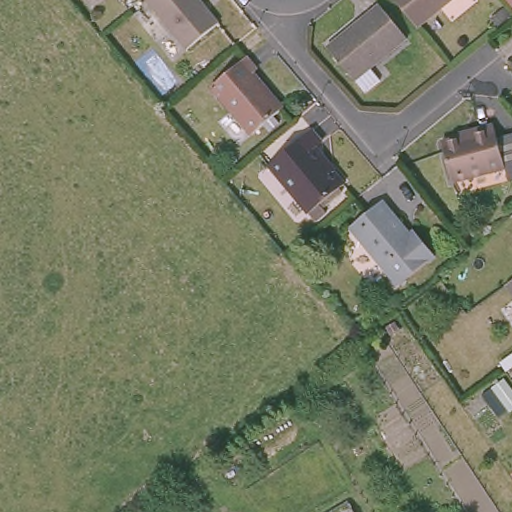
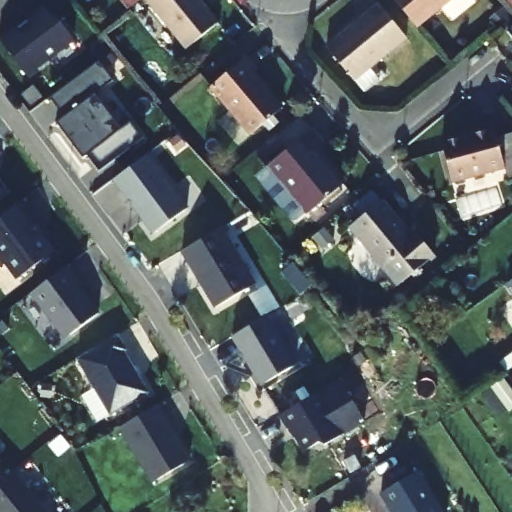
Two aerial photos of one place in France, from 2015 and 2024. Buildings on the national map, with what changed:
unchanged [(216,22),(186,48),(145,0),(198,0),(216,22)]
unchanged [(415,27),(393,0),(448,0),(415,27)]
unchanged [(406,41),(369,71),(380,83),(366,96),(324,47),(377,5),(406,41)]
new [(55,20),(61,22),(76,42),(29,76),(0,41),(44,7),(55,20)]
unchanged [(255,66),(253,68),(281,104),(248,131),(210,82),(244,53),(255,66)]
new [(113,80),(95,94),(123,129),(131,121),(143,138),(99,170),(88,155),(83,158),(58,120),(66,114),(53,98),(99,63),(113,80)]
unchanged [(498,170),(444,181),(436,141),(471,133),(471,129),(489,125),(498,170)]
unchanged [(321,145),(313,150),(343,186),(308,215),(269,166),(309,132),(321,145)]
new [(147,154),(188,208),(153,234),(113,180),(147,154)]
new [(0,194),(0,189),(3,192),(0,194)]
new [(33,220),(31,222),(54,252),(18,279),(0,255),(0,216),(19,202),(33,220)]
unchanged [(410,236),(416,231),(436,255),(399,285),(351,227),(381,202),(410,236)]
new [(221,227),(255,284),(216,308),(182,250),(221,227)]
new [(66,266),(79,284),(77,285),(99,314),(65,339),(31,293),(66,266)]
unchanged [(511,277),(512,277),(512,279),(511,277)]
new [(266,316),(295,364),(261,385),(232,336),(266,316)]
new [(117,335),(126,350),(124,351),(148,393),(110,414),(77,358),(117,335)]
new [(318,392),(343,434),(324,445),(318,444),(304,452),(291,428),(290,427),(286,429),(278,415),(318,392)]
new [(188,460),(152,482),(119,427),(156,405),(188,460)]
new [(390,512),(379,495),(418,469),(444,512),(390,512)]
new [(47,512),(0,512),(0,481),(13,470),(47,512)]

